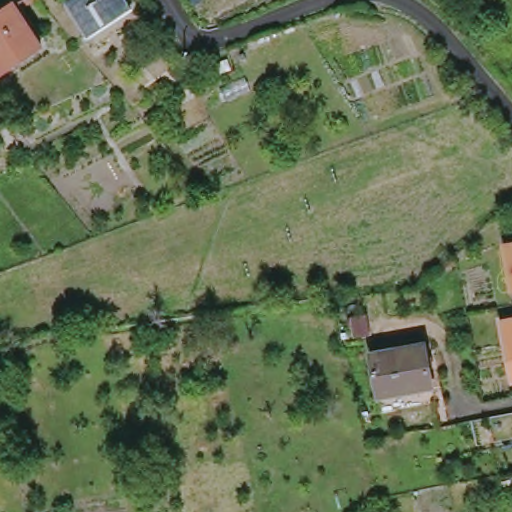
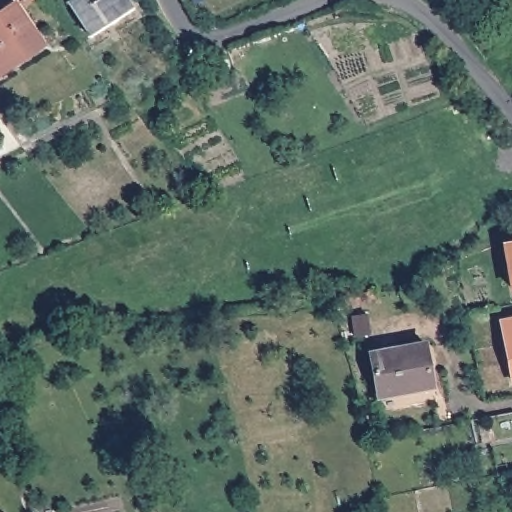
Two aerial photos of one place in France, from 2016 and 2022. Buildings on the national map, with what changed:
unchanged [(86,31),(68,2),(72,0),(129,0),(131,3),(86,31)]
unchanged [(1,17),(0,16),(0,14),(15,4),(42,46),(0,75),(0,18),(1,17)]
unchanged [(149,101),(134,109),(122,94),(141,86),(149,101)]
unchanged [(512,244),(512,280),(506,245),(512,244)]
unchanged [(512,322),(512,379),(502,324),(512,322)]
unchanged [(425,344),(433,388),(379,398),(371,354),(425,344)]
unchanged [(180,470),(183,489),(169,492),(172,506),(156,509),(149,474),(180,470)]

